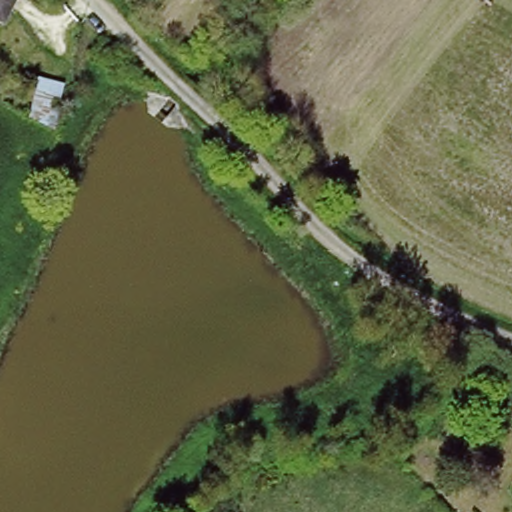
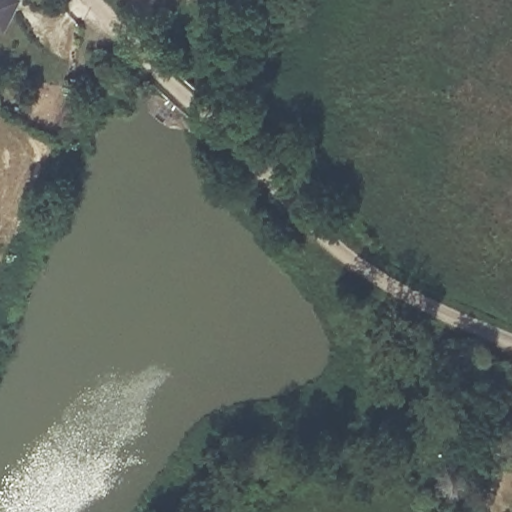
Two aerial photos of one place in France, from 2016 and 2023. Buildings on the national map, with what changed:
unchanged [(0,0),(14,0),(0,25),(0,0)]
unchanged [(66,85),(59,129),(27,124),(36,82),(66,85)]

